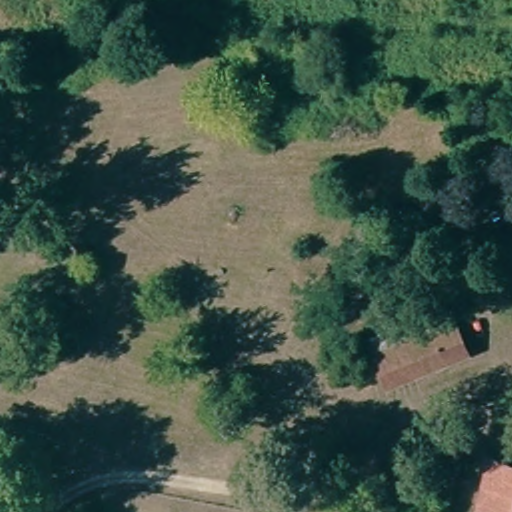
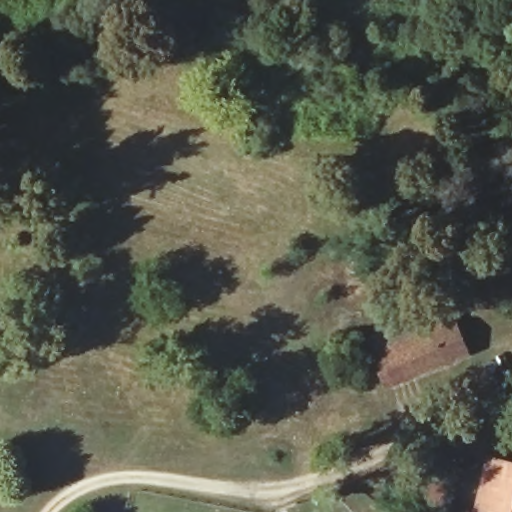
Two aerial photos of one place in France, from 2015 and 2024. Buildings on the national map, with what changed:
unchanged [(424,331),(419,322),(441,310),(463,355),(391,394),(374,361),(424,331)]
unchanged [(374,361),(365,343),(414,314),(419,322),(424,331),(374,361)]
unchanged [(482,456),(512,464),(512,512),(486,512),(467,507),(482,456)]

